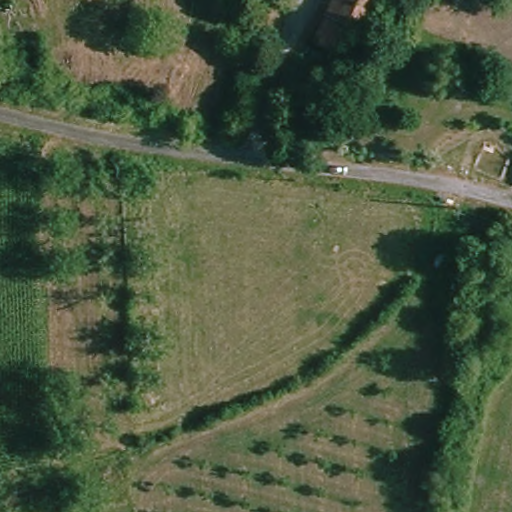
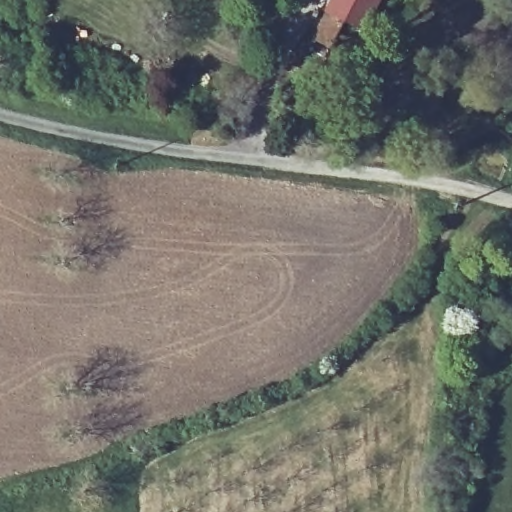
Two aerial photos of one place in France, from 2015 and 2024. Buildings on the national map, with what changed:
unchanged [(332,0),(376,0),(362,27),(327,8),(332,0)]

